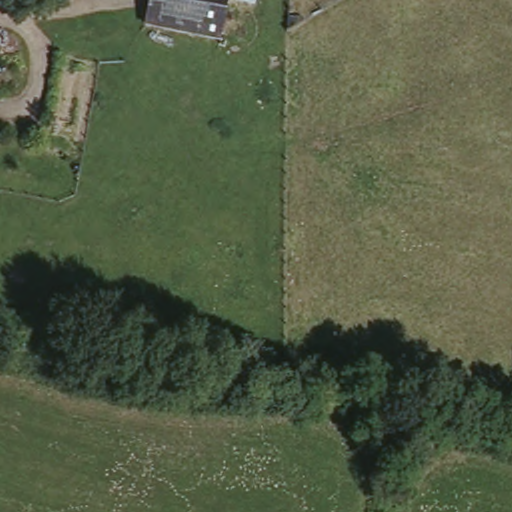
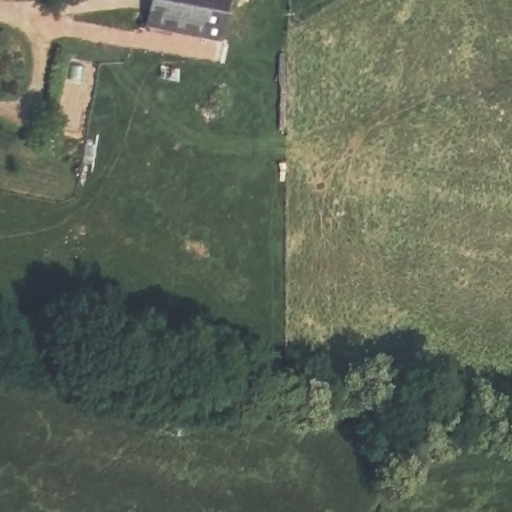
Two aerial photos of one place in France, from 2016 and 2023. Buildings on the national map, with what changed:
unchanged [(152,0),(230,0),(221,41),(146,26),(152,0)]

